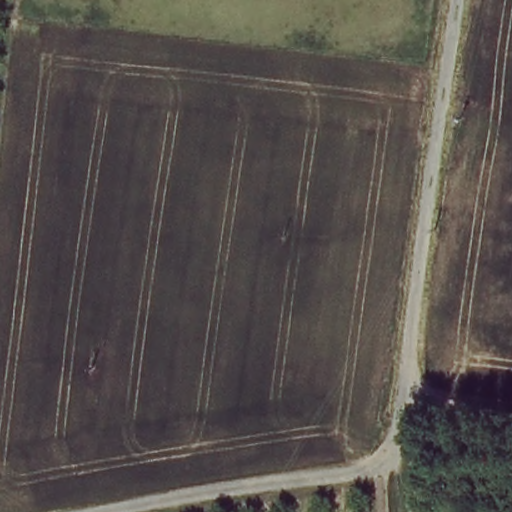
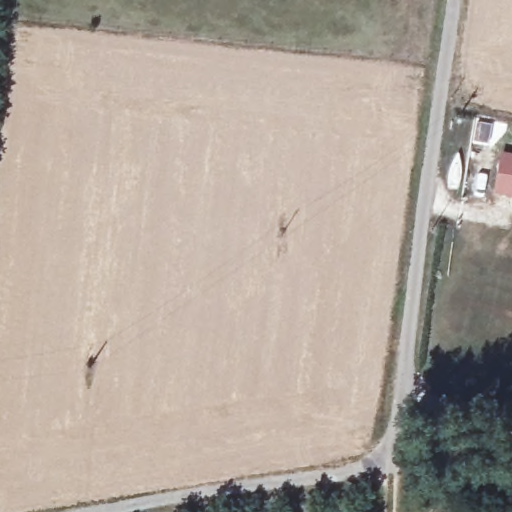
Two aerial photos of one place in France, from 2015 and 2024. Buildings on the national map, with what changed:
new [(494,192),(500,151),(512,153),(512,195),(494,192)]

